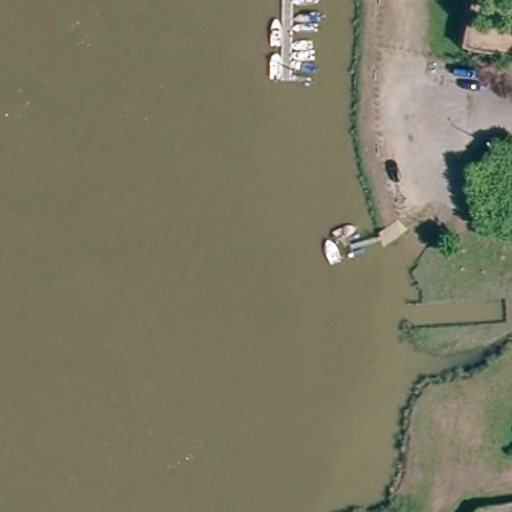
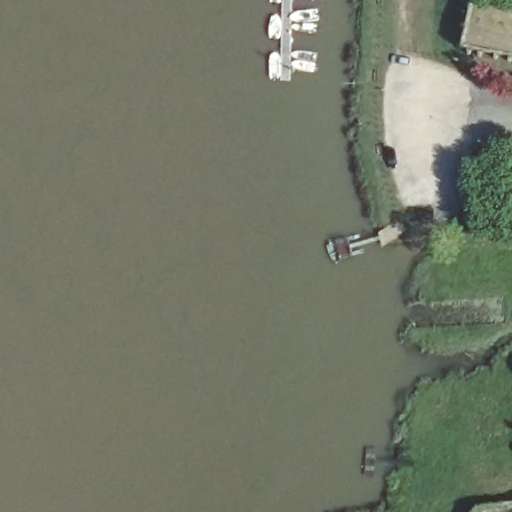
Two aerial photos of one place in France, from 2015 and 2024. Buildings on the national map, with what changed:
[]

